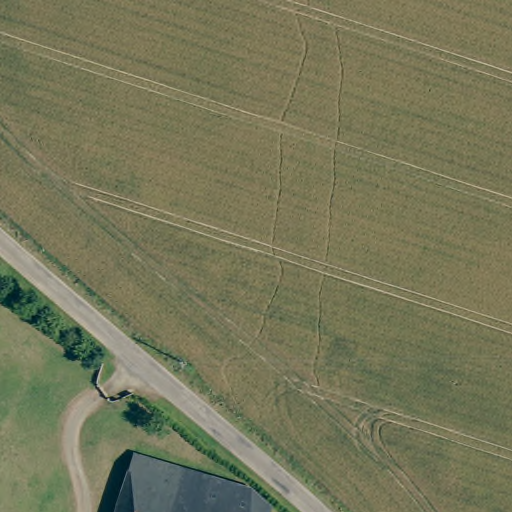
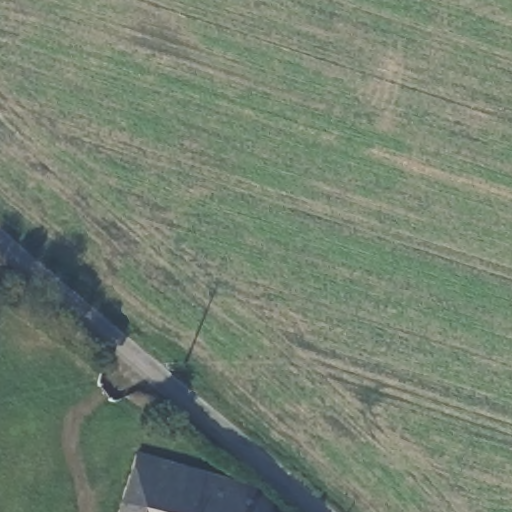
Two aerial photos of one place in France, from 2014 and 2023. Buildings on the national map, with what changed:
unchanged [(136,448),(254,486),(271,500),(268,509),(275,512),(118,512),(136,448)]

